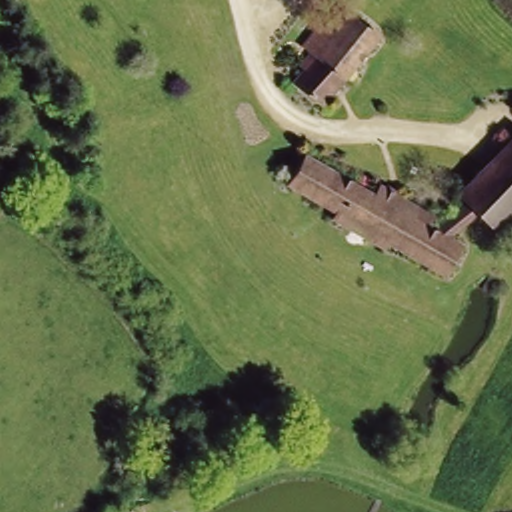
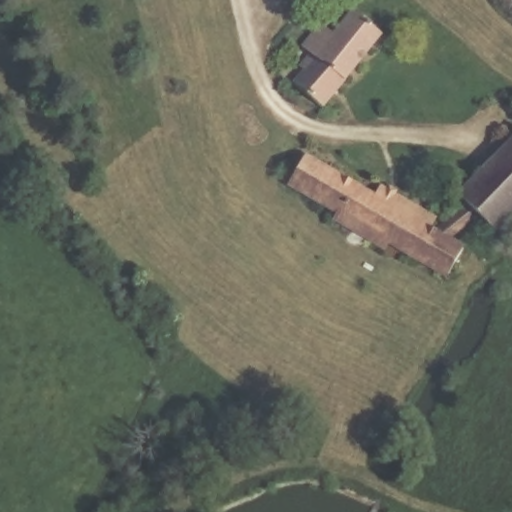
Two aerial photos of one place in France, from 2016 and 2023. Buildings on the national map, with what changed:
unchanged [(327,23),(338,31),(356,9),(385,33),(318,116),(292,96),(309,75),(304,72),(321,52),(309,44),(327,23)]
unchanged [(499,149),(506,143),(511,149),(512,148),(512,218),(502,228),(464,195),(504,154),(499,149)]
unchanged [(472,242),(452,270),(438,263),(326,203),(288,182),(306,154),(472,242)]

